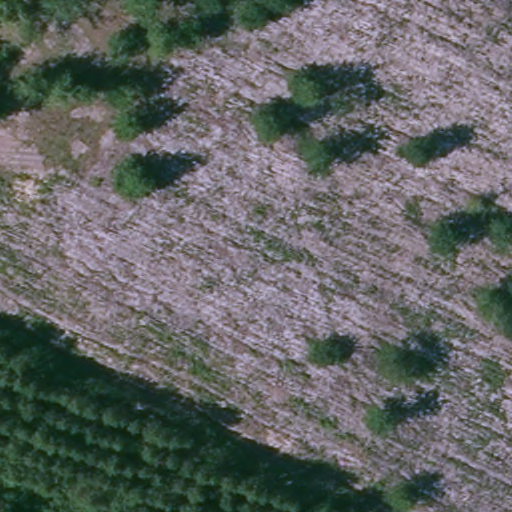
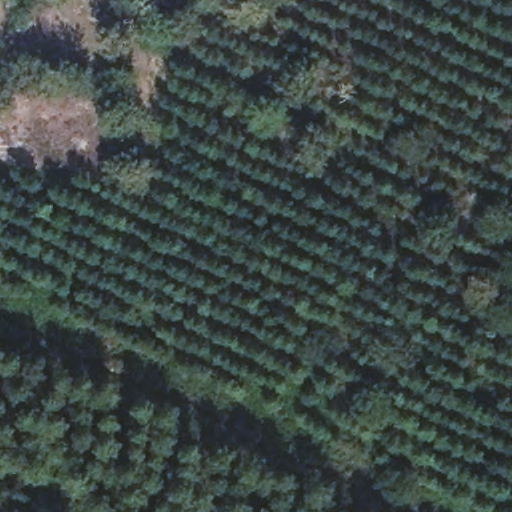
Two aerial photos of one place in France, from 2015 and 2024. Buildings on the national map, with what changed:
[]

